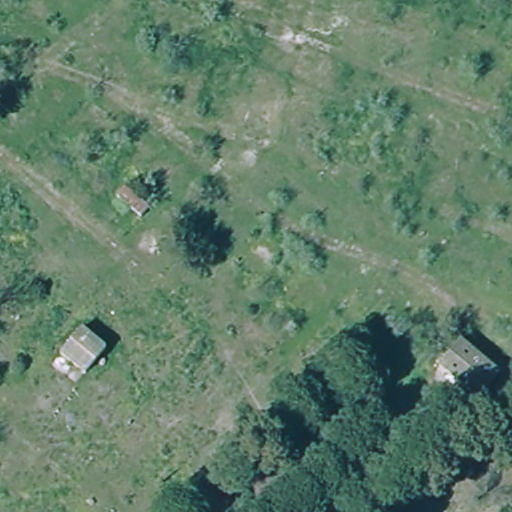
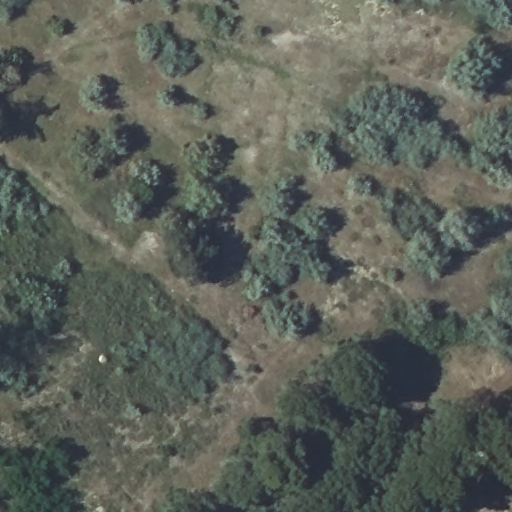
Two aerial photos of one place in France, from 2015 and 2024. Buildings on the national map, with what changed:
demolished [(62,353),(83,327),(107,347),(86,373),(62,353)]
unchanged [(500,372),(480,397),(441,365),(462,340),(500,372)]

